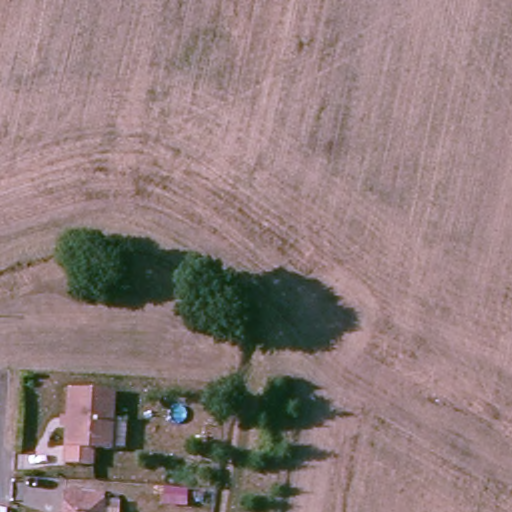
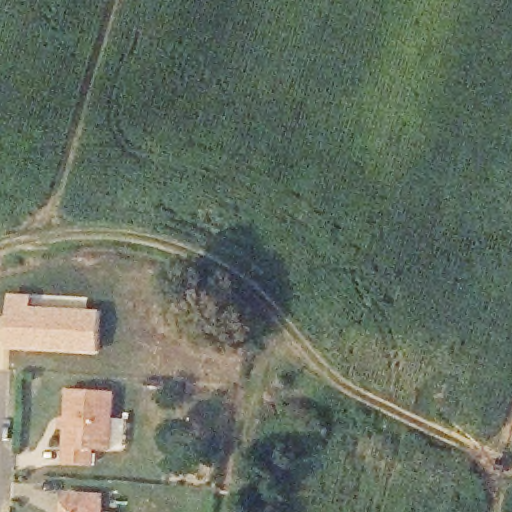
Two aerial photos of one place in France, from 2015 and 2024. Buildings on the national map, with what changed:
new [(32,295),(32,307),(101,310),(99,354),(6,349),(9,294),(32,295)]
unchanged [(108,399),(104,456),(86,455),(86,471),(58,470),(63,396),(108,399)]
unchanged [(97,498),(97,512),(60,512),(61,496),(97,498)]

